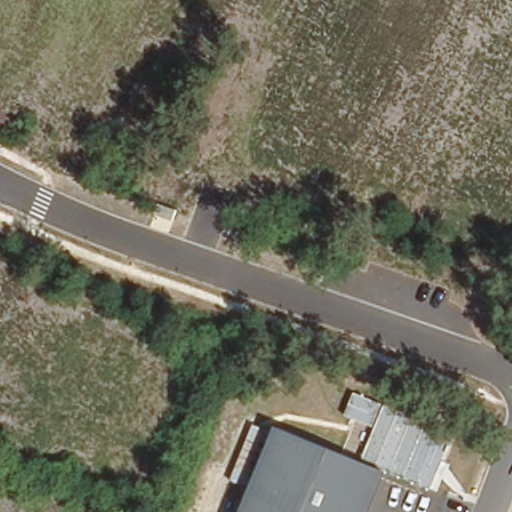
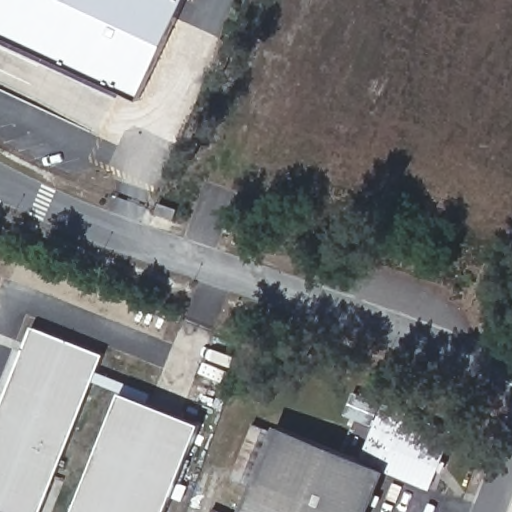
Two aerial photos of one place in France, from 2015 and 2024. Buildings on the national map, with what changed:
new [(185,0),(138,101),(0,40),(0,0),(185,0)]
new [(157,204),(176,211),(172,221),(154,214),(157,204)]
new [(104,358),(96,376),(151,398),(147,405),(94,383),(41,512),(0,512),(0,409),(32,329),(104,358)]
unchanged [(432,489),(361,458),(373,430),(343,417),(353,394),(454,435),(432,489)]
new [(121,397),(201,430),(167,512),(75,512),(121,397)]
unchanged [(370,512),(242,512),(277,427),(387,471),(370,512)]

